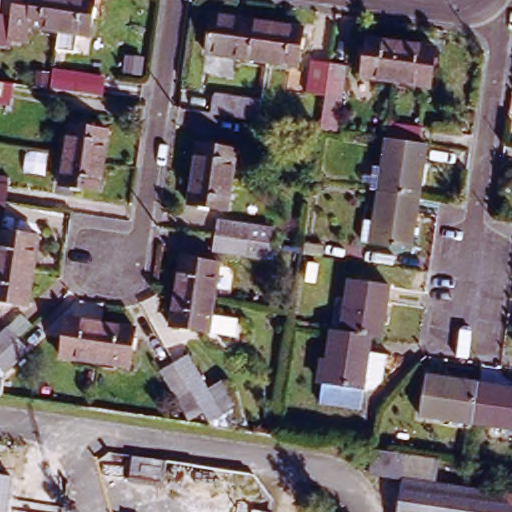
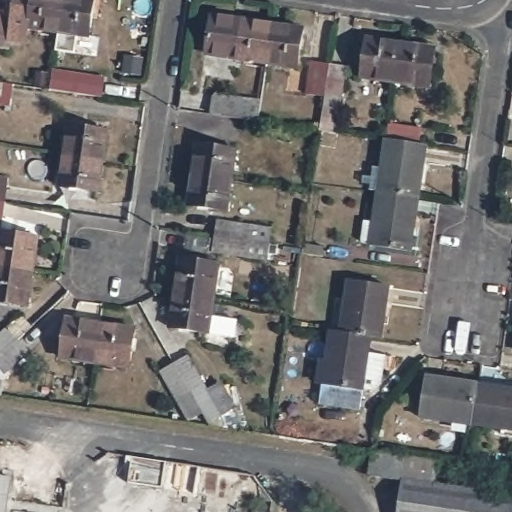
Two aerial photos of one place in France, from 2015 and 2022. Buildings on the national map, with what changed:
unchanged [(15,0),(64,0),(59,33),(29,28),(25,45),(10,41),(9,49),(0,48),(0,16),(12,19),(15,0)]
unchanged [(64,0),(95,0),(89,37),(59,33),(64,0)]
unchanged [(269,65),(207,57),(213,19),(275,29),(269,65)]
unchanged [(269,65),(275,29),(305,33),(299,70),(269,65)]
unchanged [(361,78),(367,40),(402,45),(397,83),(361,78)]
unchanged [(397,83),(402,45),(435,50),(430,88),(397,83)]
unchanged [(312,89),(316,58),(335,60),(352,64),(347,95),(330,93),(312,89)]
unchanged [(102,73),(98,93),(37,83),(40,64),(102,73)]
unchanged [(0,105),(0,82),(15,84),(12,107),(0,105)]
unchanged [(262,121),(218,115),(220,96),(265,104),(262,121)]
unchanged [(69,125),(107,131),(102,161),(64,155),(69,125)]
unchanged [(388,129),(420,134),(418,150),(425,151),(417,204),(377,199),(385,145),(388,129)]
unchanged [(197,145),(235,150),(231,181),(193,175),(197,145)]
unchanged [(64,155),(102,161),(98,192),(59,187),(64,155)]
unchanged [(193,175),(231,181),(227,212),(188,206),(193,175)]
unchanged [(0,178),(12,180),(10,197),(8,214),(0,212),(0,178)]
unchanged [(377,199),(417,204),(409,255),(370,250),(377,199)]
unchanged [(267,260),(212,253),(214,237),(216,221),(272,229),(270,244),(267,260)]
unchanged [(32,271),(0,266),(0,231),(37,237),(32,271)]
unchanged [(179,258),(217,263),(212,299),(175,293),(179,258)]
unchanged [(27,305),(0,301),(0,266),(32,271),(27,305)]
unchanged [(347,282),(387,287),(379,338),(369,337),(340,333),(347,282)]
unchanged [(175,293),(212,299),(207,332),(170,327),(175,293)]
unchanged [(59,362),(65,323),(99,329),(94,367),(59,362)]
unchanged [(94,367),(99,329),(134,334),(129,373),(94,367)]
unchanged [(380,382),(374,392),(362,389),(359,408),(319,403),(322,383),(313,382),(316,359),(325,361),(330,331),(340,333),(369,337),(367,353),(384,356),(380,382)]
unchanged [(17,344),(28,354),(5,378),(0,373),(0,337),(5,332),(17,344)]
unchanged [(194,354),(212,387),(224,380),(237,406),(205,422),(201,414),(187,420),(160,373),(194,354)]
unchanged [(419,414),(424,377),(476,384),(470,422),(419,414)]
unchanged [(470,422),(476,384),(512,390),(512,428),(470,422)]
unchanged [(426,458),(432,459),(439,460),(435,484),(512,495),(512,512),(399,512),(404,480),(367,474),(370,450),(426,458)]
unchanged [(4,512),(0,512),(0,478),(9,480),(4,512)]

